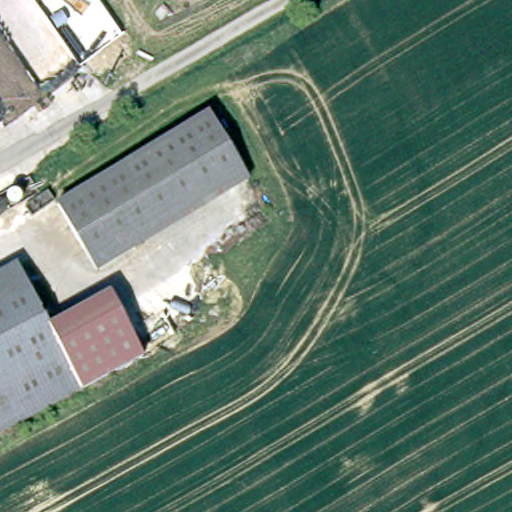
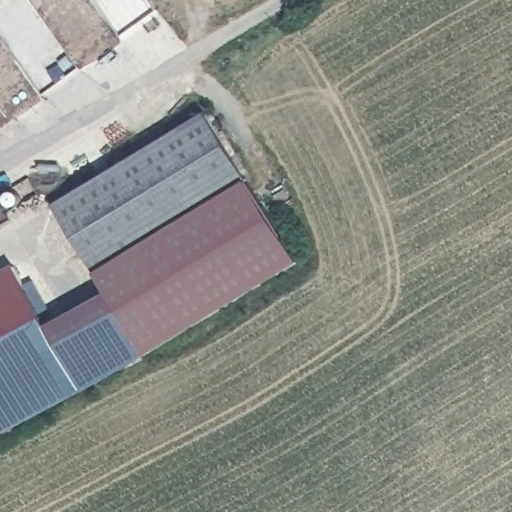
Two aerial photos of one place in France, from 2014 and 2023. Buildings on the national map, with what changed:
unchanged [(94,271),(55,204),(208,116),(247,183),(94,271)]
new [(299,264),(144,357),(140,352),(106,290),(105,291),(94,271),(247,183),(299,264)]
unchanged [(27,415),(0,367),(0,270),(11,264),(45,324),(79,386),(27,415)]
unchanged [(140,352),(127,359),(79,386),(45,324),(94,297),(106,290),(140,352)]
unchanged [(0,367),(27,415),(0,431),(0,367)]

